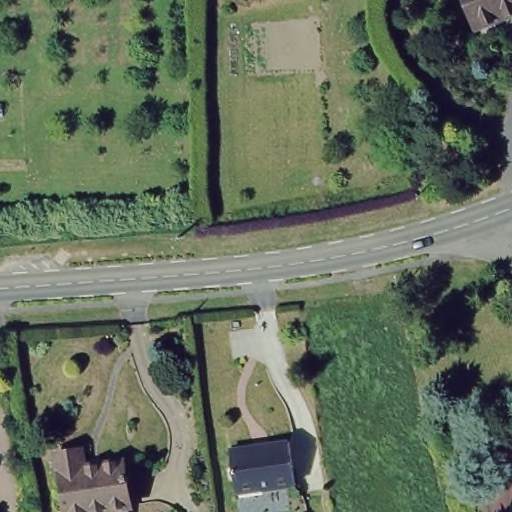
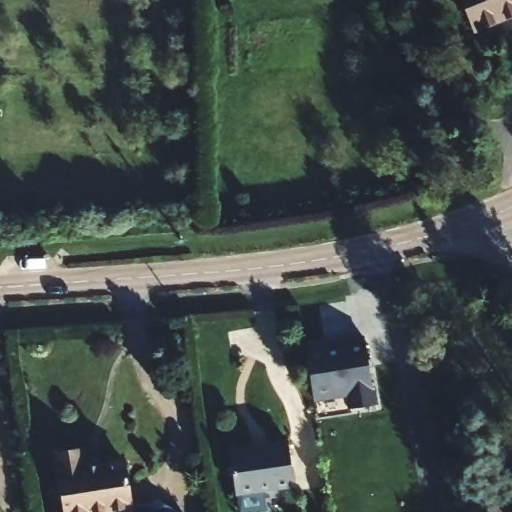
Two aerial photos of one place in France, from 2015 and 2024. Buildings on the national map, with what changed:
unchanged [(462,0),(512,0),(512,15),(474,32),(462,0)]
new [(0,103),(2,116),(0,116),(0,103)]
new [(348,410),(346,397),(314,402),(306,346),(364,336),(376,405),(348,410)]
unchanged [(285,441),(294,482),(236,492),(228,448),(285,441)]
unchanged [(51,448),(73,446),(75,463),(119,458),(126,505),(83,510),(61,512),(51,448)]
unchanged [(91,512),(61,512),(83,510),(90,508),(91,512)]

